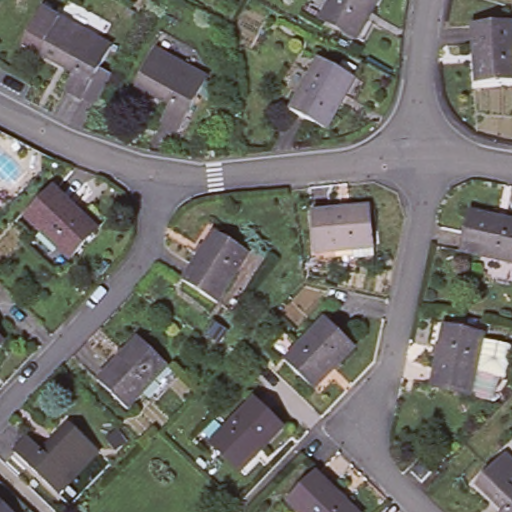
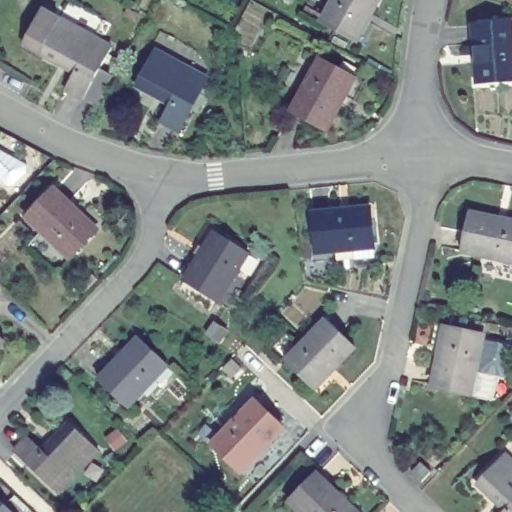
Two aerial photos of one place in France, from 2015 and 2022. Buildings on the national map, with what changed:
unchanged [(362,40),(328,21),(340,0),(384,0),(362,40)]
unchanged [(474,20),(512,14),(512,74),(482,78),(474,20)]
unchanged [(100,102),(87,96),(85,98),(68,88),(78,70),(45,52),(63,18),(114,45),(102,67),(115,74),(100,102)]
unchanged [(212,73),(182,125),(165,115),(173,98),(140,80),(160,44),(212,73)]
unchanged [(355,76),(327,127),(293,108),(322,57),(355,76)]
unchanged [(102,224),(74,252),(30,211),(58,182),(102,224)]
unchanged [(380,237),(322,250),(313,212),(372,199),(380,237)]
unchanged [(512,255),(463,242),(472,205),(512,216),(512,255)]
unchanged [(252,247),(220,298),(187,277),(217,226),(252,247)]
unchanged [(357,341),(315,384),(287,356),(327,314),(357,341)]
unchanged [(480,331),(480,335),(474,368),(470,391),(430,384),(442,324),(480,331)]
unchanged [(8,337),(0,346),(0,330),(8,337)]
unchanged [(169,359),(127,401),(99,372),(140,331),(169,359)]
unchanged [(480,335),(510,340),(505,364),(508,365),(507,372),(506,374),(503,375),(496,374),(497,372),(474,368),(480,335)]
unchanged [(283,423),(243,465),(215,438),(255,396),(283,423)]
unchanged [(43,445),(70,417),(98,444),(59,487),(15,446),(28,431),(43,445)]
unchanged [(475,470),(502,442),(512,452),(512,512),(490,512),(503,497),(475,470)]
unchanged [(307,512),(293,498),(322,470),(363,512),(307,512)]
unchanged [(435,482),(427,491),(416,481),(423,472),(435,482)]
unchanged [(0,512),(0,492),(21,512),(0,512)]

